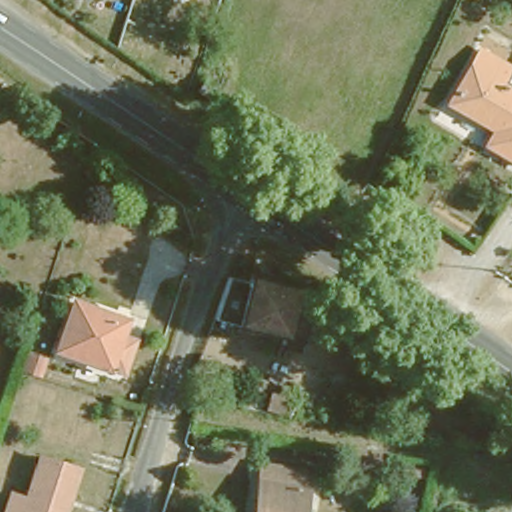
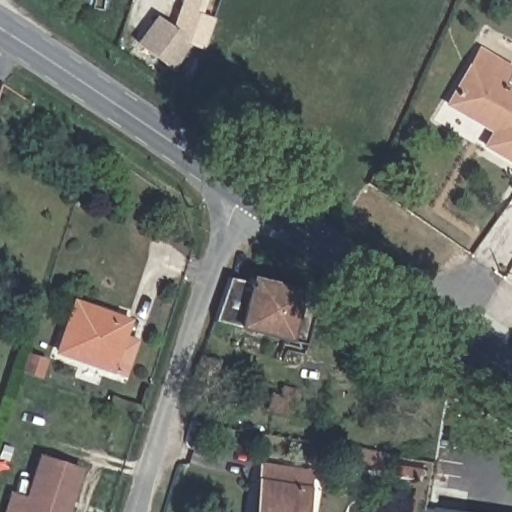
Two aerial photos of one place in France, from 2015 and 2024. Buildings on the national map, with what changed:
new [(206,0),(201,14),(215,18),(204,49),(191,45),(193,42),(172,27),(183,1),(184,0),(206,0)]
unchanged [(183,0),(184,0),(183,1),(183,0)]
new [(171,72),(134,44),(156,15),(193,42),(171,72)]
unchanged [(494,121),(452,94),(485,39),(512,54),(512,149),(486,134),(494,121)]
unchanged [(231,272),(246,274),(250,268),(300,278),(299,286),(313,290),(302,330),(218,312),(231,272)]
unchanged [(129,365),(61,340),(76,290),(105,298),(130,307),(126,322),(142,327),(129,365)]
unchanged [(206,335),(230,342),(225,360),(200,352),(206,335)]
unchanged [(281,385),(282,376),(292,377),(296,366),(307,367),(301,388),(281,385)]
unchanged [(432,438),(430,452),(412,450),(413,437),(432,438)]
unchanged [(65,512),(0,512),(5,497),(22,502),(39,451),(79,463),(82,464),(65,512)]
unchanged [(312,466),(305,512),(256,512),(256,510),(262,473),(265,457),(312,466)]

